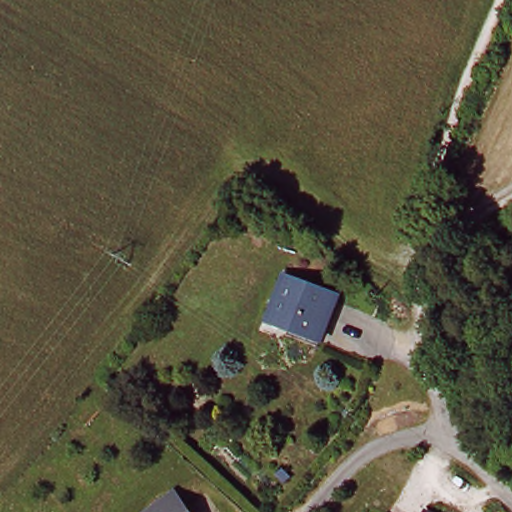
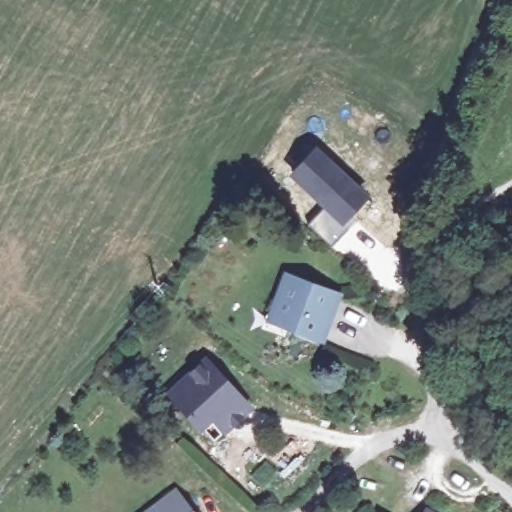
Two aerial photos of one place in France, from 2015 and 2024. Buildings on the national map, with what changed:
new [(307,224),(322,207),(288,175),(317,145),(368,194),(350,216),(352,219),(345,227),(331,245),(307,224)]
unchanged [(277,309),(292,276),(342,296),(323,338),(298,328),(274,318),(277,309)]
new [(224,432),(212,418),(200,430),(175,402),(191,388),(185,381),(206,362),(249,408),(224,432)]
unchanged [(185,494),(198,512),(159,512),(161,510),(185,494)]

